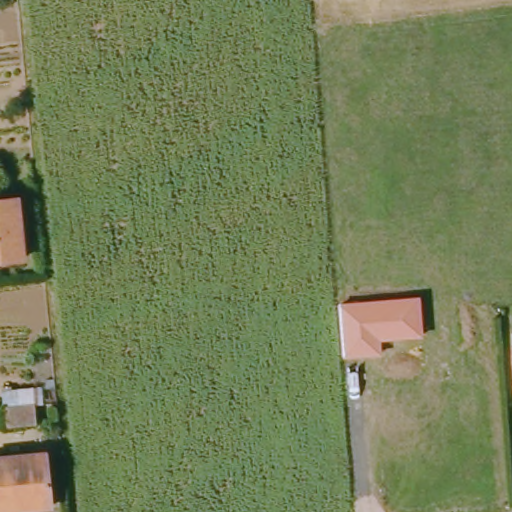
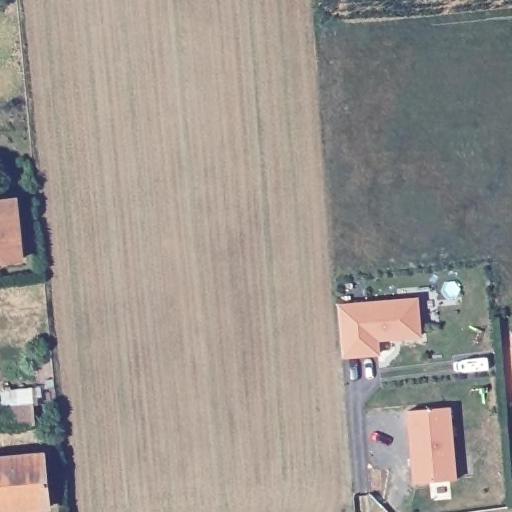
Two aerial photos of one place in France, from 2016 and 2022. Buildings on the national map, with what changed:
unchanged [(16,201),(22,260),(0,261),(0,202),(16,201)]
unchanged [(380,342),(381,356),(343,360),(337,303),(419,297),(422,338),(380,342)]
unchanged [(30,397),(30,421),(0,423),(0,398),(30,397)]
new [(407,412),(450,408),(456,479),(413,483),(407,412)]
unchanged [(41,452),(45,500),(13,503),(13,510),(0,511),(0,456),(41,452)]

